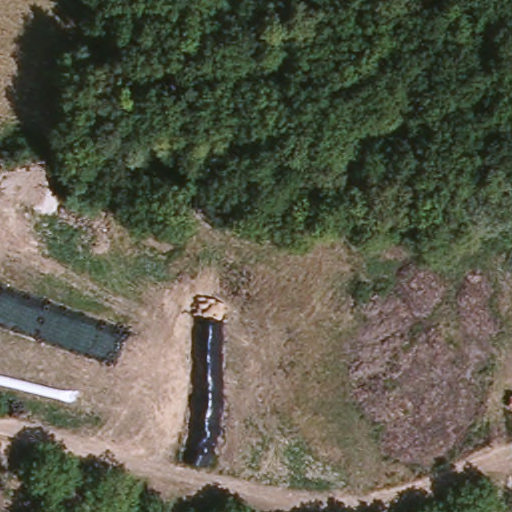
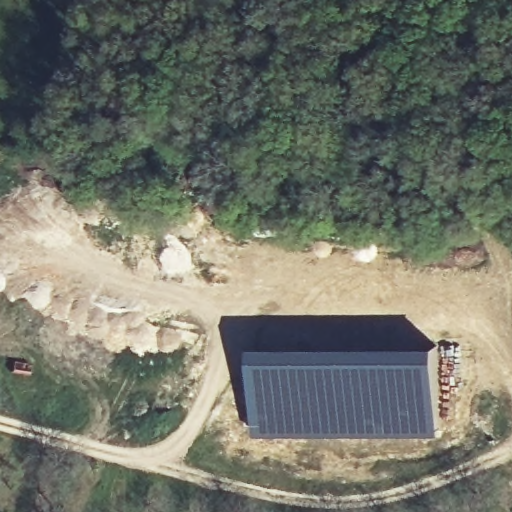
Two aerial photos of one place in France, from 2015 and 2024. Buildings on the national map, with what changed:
new [(440,434),(257,435),(255,346),(440,347),(440,434)]

